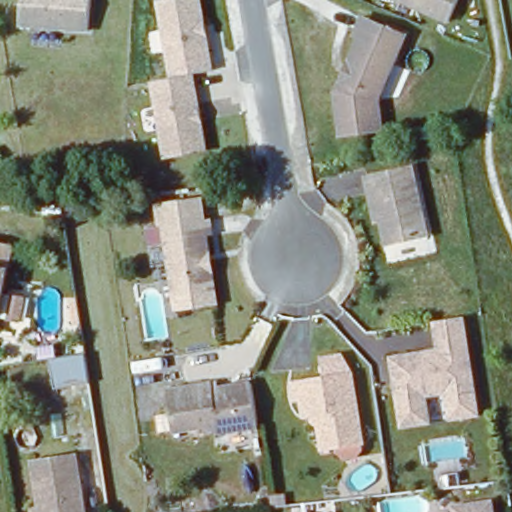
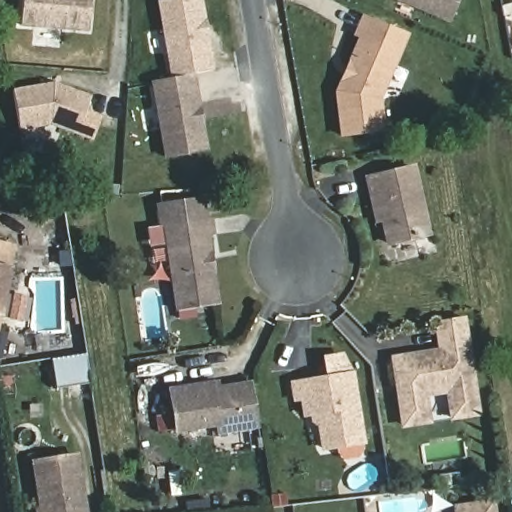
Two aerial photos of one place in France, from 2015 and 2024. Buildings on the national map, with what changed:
unchanged [(19,21),(21,0),(89,0),(86,27),(19,21)]
unchanged [(166,154),(152,79),(172,75),(157,0),(199,0),(202,22),(204,31),(211,67),(192,70),(197,100),(199,109),(206,146),(166,154)]
unchanged [(403,0),(458,0),(450,19),(403,0)]
unchanged [(365,98),(371,130),(330,138),(322,96),(345,41),(340,39),(347,20),(372,30),(391,38),(365,98)]
new [(47,83),(85,95),(74,131),(46,122),(16,129),(7,92),(47,83)]
unchanged [(371,193),(367,177),(412,166),(428,233),(389,242),(382,218),(378,219),(371,193)]
unchanged [(209,221),(211,237),(206,238),(215,307),(176,313),(162,227),(209,221)]
unchanged [(9,248),(0,293),(0,246),(9,248)]
unchanged [(476,412),(450,416),(446,389),(422,393),(423,402),(398,406),(390,358),(406,355),(416,353),(438,350),(432,320),(460,315),(476,412)]
unchanged [(81,356),(85,386),(51,391),(46,361),(81,356)]
unchanged [(361,453),(347,456),(338,448),(337,442),(326,444),(320,408),(307,410),(304,394),(297,396),(295,379),(353,368),(365,437),(366,444),(361,453)]
unchanged [(216,434),(214,426),(174,433),(166,391),(209,384),(214,383),(215,389),(249,383),(256,427),(216,434)]
unchanged [(33,478),(29,460),(77,452),(80,470),(87,512),(40,512),(33,478)]
unchanged [(447,475),(457,473),(459,488),(449,489),(447,475)]
unchanged [(454,507),(490,503),(490,512),(455,512),(454,507)]

